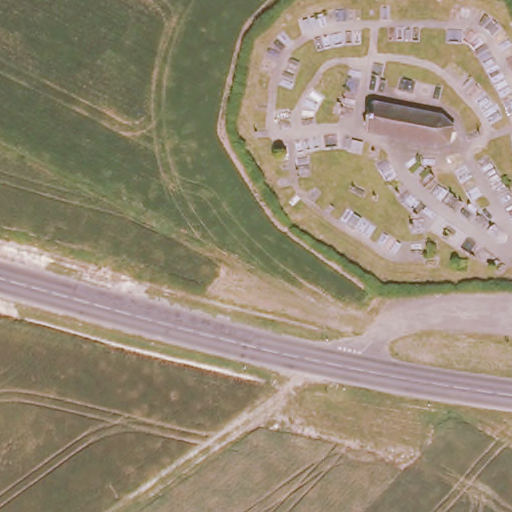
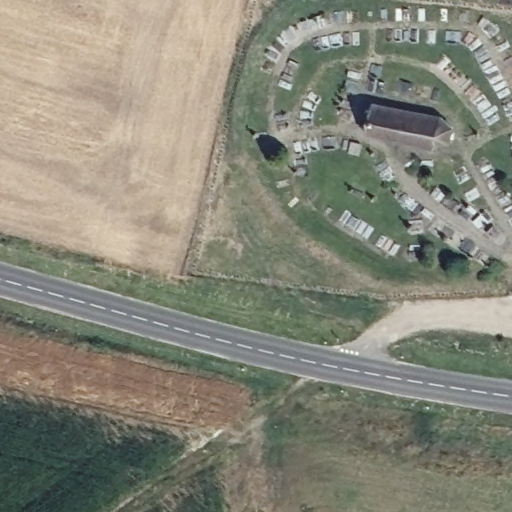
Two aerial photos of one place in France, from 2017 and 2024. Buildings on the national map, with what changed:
unchanged [(445,123),(449,126),(451,130),(451,135),(449,142),(445,147),(441,148),(365,132),(371,104),(445,119),(445,123)]

